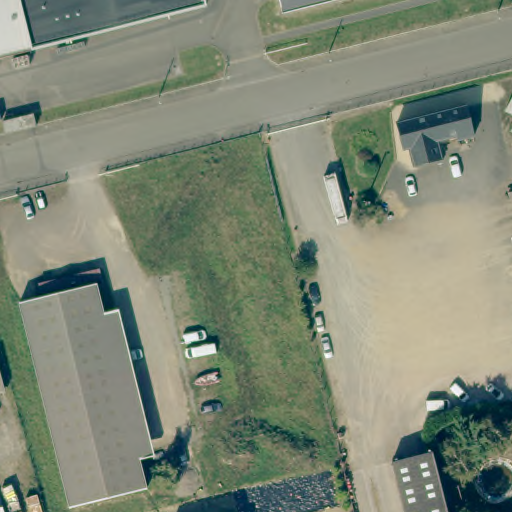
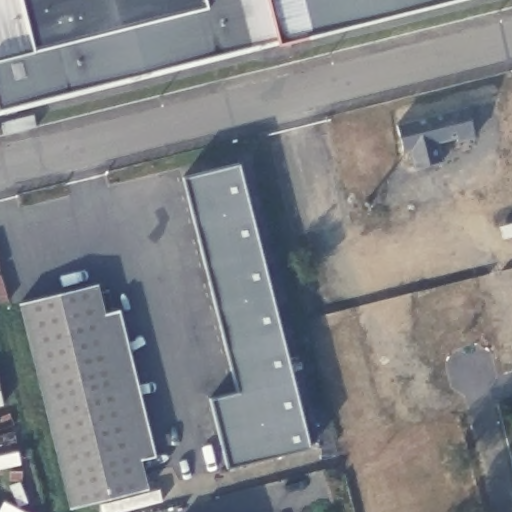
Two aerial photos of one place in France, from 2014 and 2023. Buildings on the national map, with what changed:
unchanged [(95,36),(0,59),(0,0),(202,0),(205,9),(95,36)]
new [(0,113),(0,59),(95,36),(205,9),(202,0),(448,0),(276,44),(0,113)]
demolished [(283,0),(343,0),(286,15),(283,0)]
unchanged [(409,148),(401,150),(395,124),(410,120),(465,106),(473,136),(456,141),(455,136),(435,141),(440,160),(421,165),(414,167),(409,148)]
unchanged [(5,135),(2,124),(22,118),(25,129),(5,135)]
new [(238,163),(310,448),(227,469),(209,398),(235,391),(181,177),(238,163)]
unchanged [(154,490),(75,509),(25,303),(102,283),(110,313),(146,460),(154,490)]
unchanged [(110,313),(125,309),(161,456),(146,460),(110,313)]
demolished [(437,451),(454,512),(409,512),(397,462),(437,451)]

